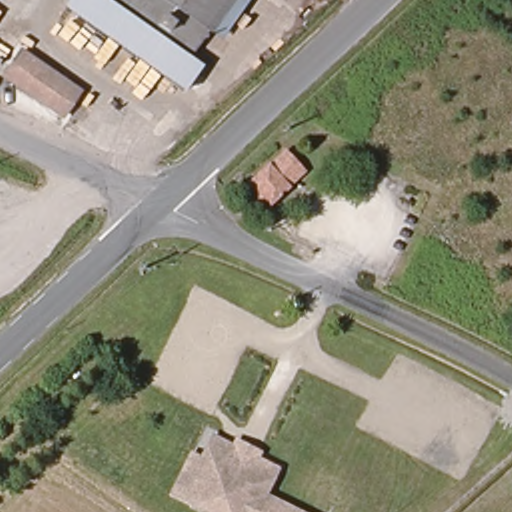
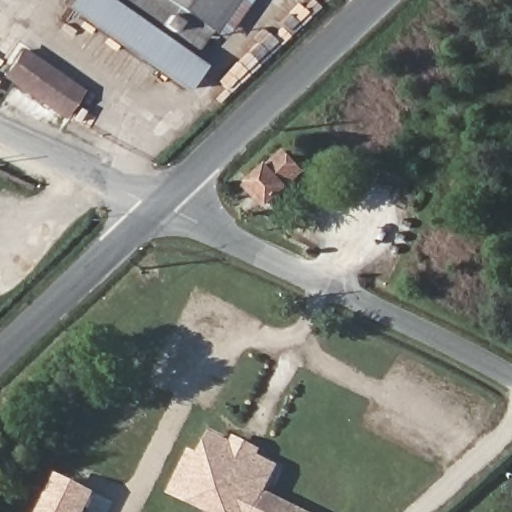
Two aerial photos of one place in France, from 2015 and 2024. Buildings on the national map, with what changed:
unchanged [(221,41),(210,32),(192,57),(204,66),(184,92),(64,8),(69,0),(250,0),(221,41)]
unchanged [(70,116),(11,74),(27,54),(86,95),(70,116)]
unchanged [(273,168),(275,169),(289,153),(298,161),(307,170),(301,176),(292,186),(293,187),(278,207),(254,188),(273,168)]
unchanged [(189,454),(199,459),(210,436),(231,446),(235,440),(255,451),(252,457),(273,467),(261,491),(250,512),(210,512),(170,492),(189,454)]
new [(43,512),(60,477),(100,496),(92,512),(43,512)]
unchanged [(306,512),(250,512),(261,491),(306,512)]

